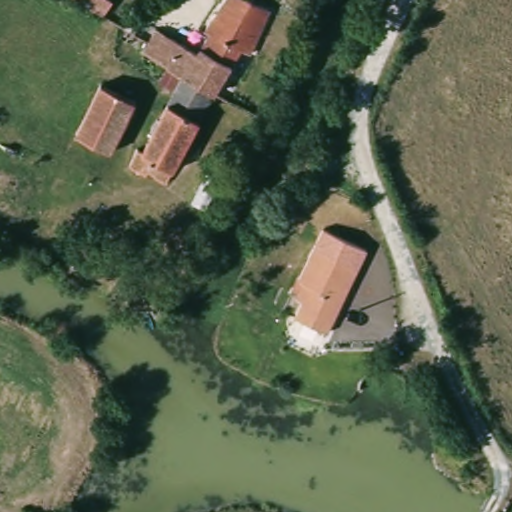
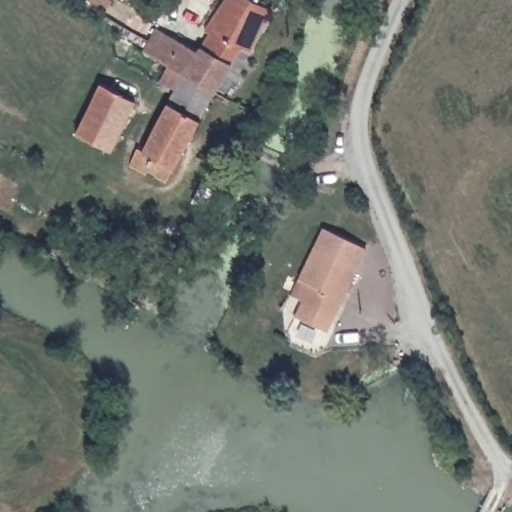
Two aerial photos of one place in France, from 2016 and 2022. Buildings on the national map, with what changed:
unchanged [(87,3),(86,2),(82,0),(114,0),(118,2),(110,15),(87,3)]
unchanged [(148,56),(156,43),(160,34),(203,51),(214,34),(210,31),(223,8),(246,19),(254,3),(267,9),(251,51),(245,49),(218,95),(188,79),(148,56)]
unchanged [(169,181),(151,170),(149,174),(133,165),(141,151),(144,154),(188,79),(218,95),(169,181)]
unchanged [(112,146),(81,130),(101,90),(132,107),(112,146)]
unchanged [(367,247),(329,334),(293,317),(300,300),(291,295),(323,227),(367,247)]

